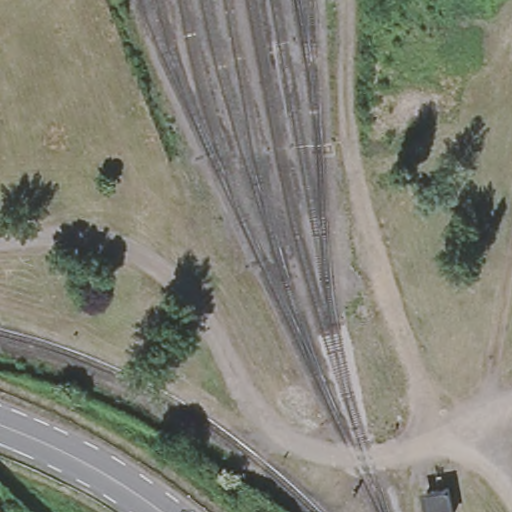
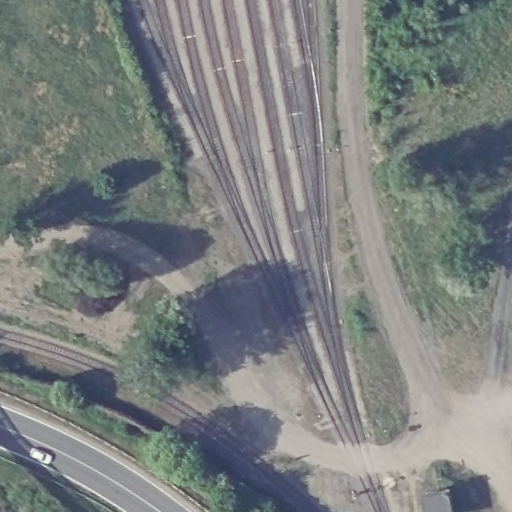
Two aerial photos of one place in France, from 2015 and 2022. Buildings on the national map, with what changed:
unchanged [(450,480),(453,512),(421,512),(418,484),(450,480)]

